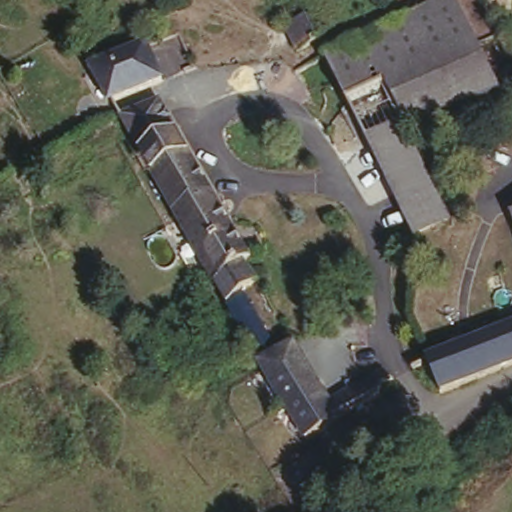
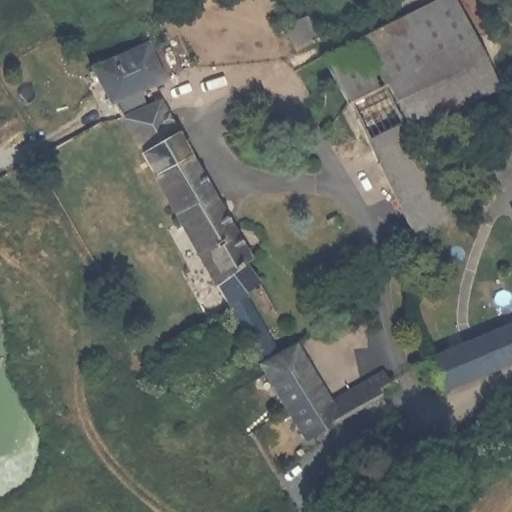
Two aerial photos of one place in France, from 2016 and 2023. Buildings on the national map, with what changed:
unchanged [(456,0),(492,83),(493,86),(404,124),(381,76),(365,31),(436,0),(456,0)]
unchanged [(286,27),(312,16),(322,41),(297,51),(286,27)]
unchanged [(365,31),(381,76),(345,92),(324,49),(365,31)]
unchanged [(94,63),(149,41),(166,80),(111,103),(94,63)]
unchanged [(345,92),(381,76),(404,124),(446,210),(447,214),(411,231),(345,92)]
unchanged [(263,363),(230,301),(145,151),(125,115),(162,98),(254,259),(249,262),(263,283),(246,294),(277,352),(301,342),(335,401),(387,370),(394,382),(380,389),(382,393),(332,421),(334,425),(307,441),(263,363)]
unchanged [(442,391),(428,355),(512,320),(512,361),(442,391)]

